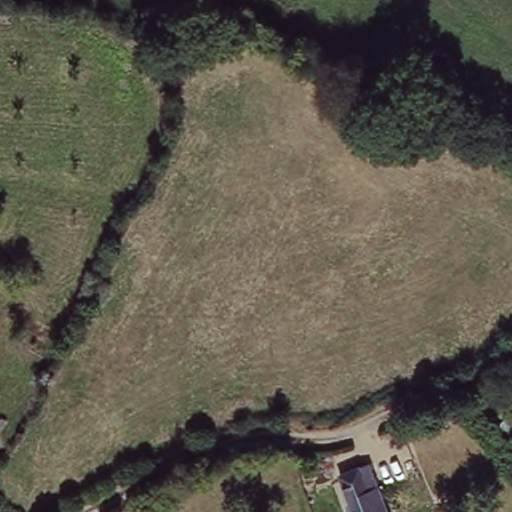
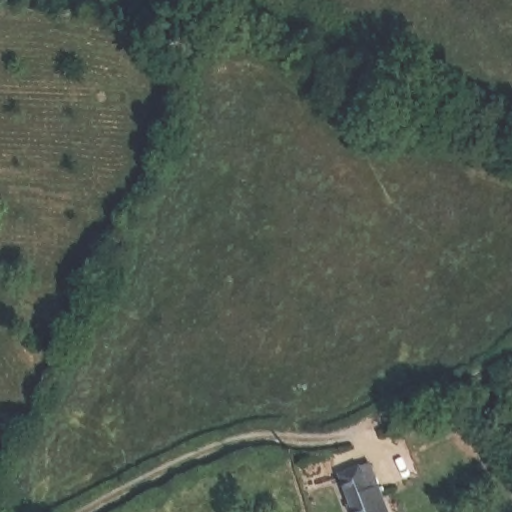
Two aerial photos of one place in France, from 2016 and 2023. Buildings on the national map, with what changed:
unchanged [(325,478),(369,460),(390,512),(339,512),(325,478)]

